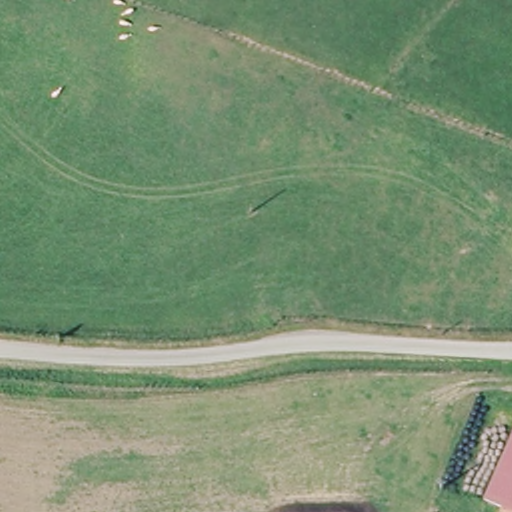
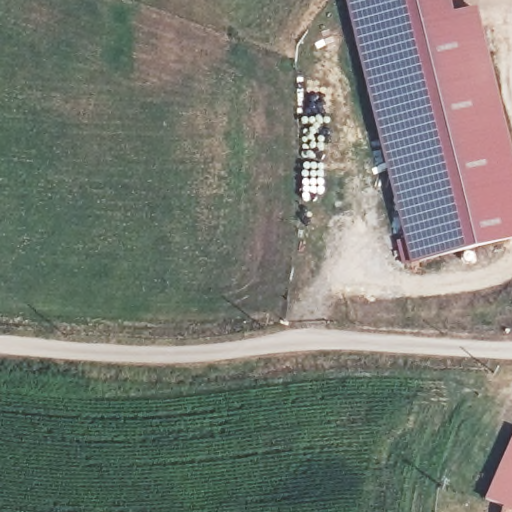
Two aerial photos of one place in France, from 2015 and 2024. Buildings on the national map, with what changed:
new [(472,6),(512,157),(512,235),(413,262),(412,260),(404,262),(399,241),(407,239),(342,0),(444,0),(447,13),(472,6)]
unchanged [(494,502),(478,494),(496,456),(512,429),(512,511),(494,502)]

